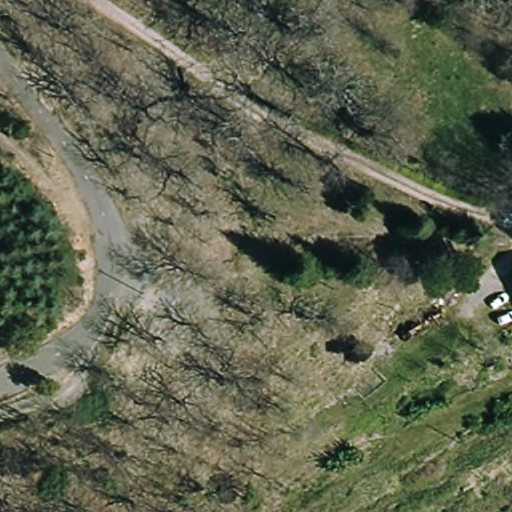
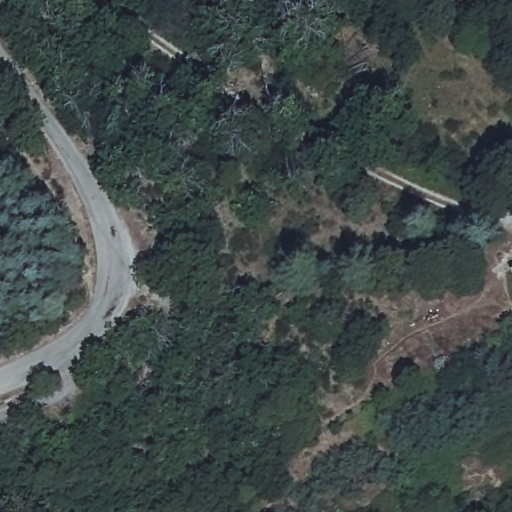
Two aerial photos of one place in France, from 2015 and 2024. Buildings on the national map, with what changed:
unchanged [(512,267),(512,275),(509,268),(512,267)]

